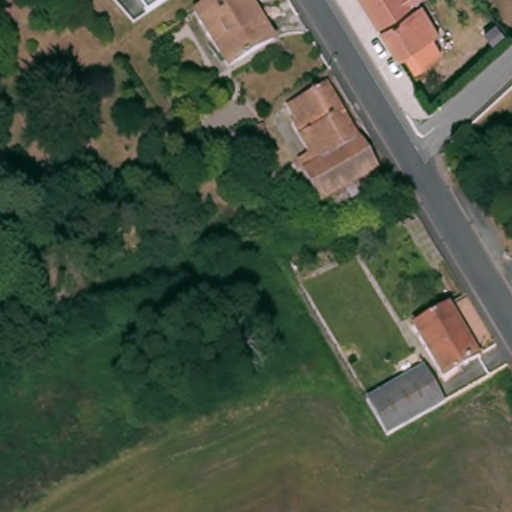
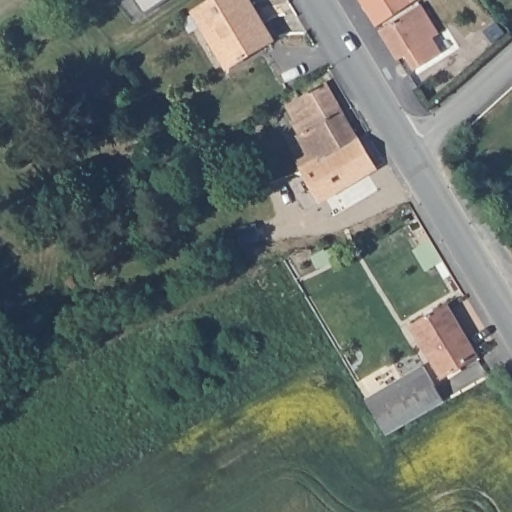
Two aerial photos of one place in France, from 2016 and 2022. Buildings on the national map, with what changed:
unchanged [(136,0),(163,0),(145,14),(136,0)]
unchanged [(253,0),(277,37),(231,66),(196,12),(215,0),(253,0)]
unchanged [(364,0),(415,0),(380,25),(364,0)]
unchanged [(440,30),(400,58),(383,30),(422,4),(440,30)]
unchanged [(285,110),(328,85),(345,114),(301,139),(285,110)]
unchanged [(345,114),(361,140),(338,153),(307,172),(302,162),(311,156),(301,139),(345,114)]
unchanged [(338,153),(361,140),(369,154),(313,188),(305,174),(307,172),(338,153)]
unchanged [(384,180),(353,199),(328,214),(313,188),(369,154),(378,169),(384,180)]
unchanged [(447,303),(475,353),(438,375),(411,324),(447,303)]
unchanged [(448,405),(386,426),(366,399),(428,371),(448,405)]

